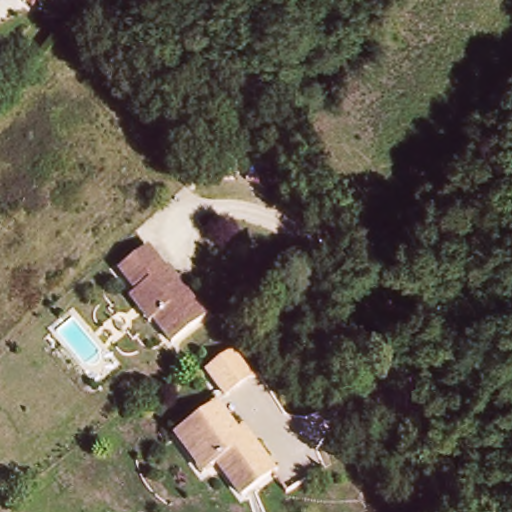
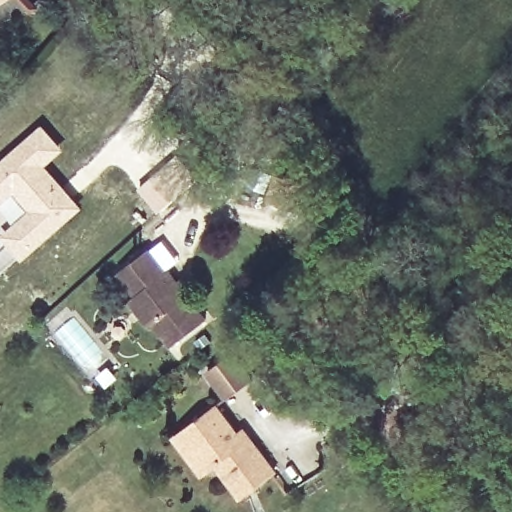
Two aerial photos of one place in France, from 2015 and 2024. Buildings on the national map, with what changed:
new [(42,122),(65,148),(47,164),(84,206),(24,259),(2,235),(0,233),(0,160),(42,122)]
new [(182,150),(204,173),(157,214),(136,189),(182,150)]
unchanged [(136,296),(139,294),(122,274),(135,264),(151,252),(157,259),(167,272),(171,269),(181,282),(187,277),(194,286),(187,291),(209,318),(176,345),(157,323),(152,328),(130,300),(136,296)]
unchanged [(232,350),(250,374),(225,393),(207,369),(232,350)]
unchanged [(312,422),(304,411),(318,401),(326,412),(312,422)]
unchanged [(216,406),(237,435),(245,430),(251,439),(274,472),(241,498),(216,466),(209,470),(201,475),(172,438),(181,432),(216,406)]

